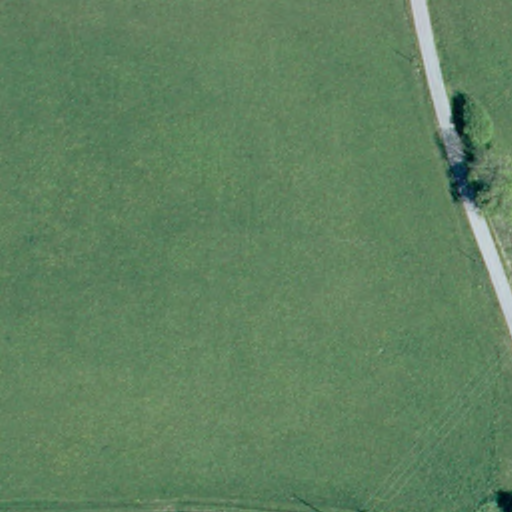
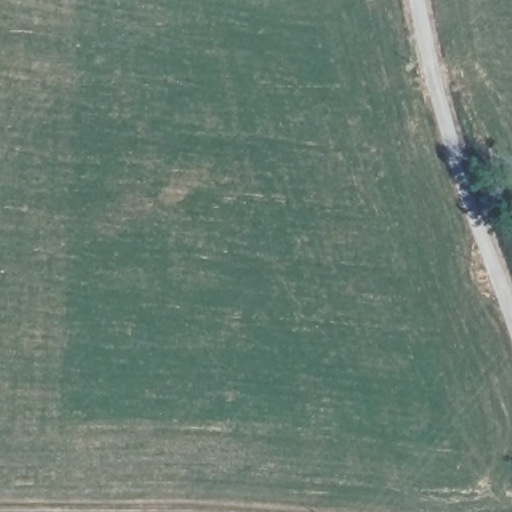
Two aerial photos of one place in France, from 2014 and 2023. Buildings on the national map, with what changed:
[]

